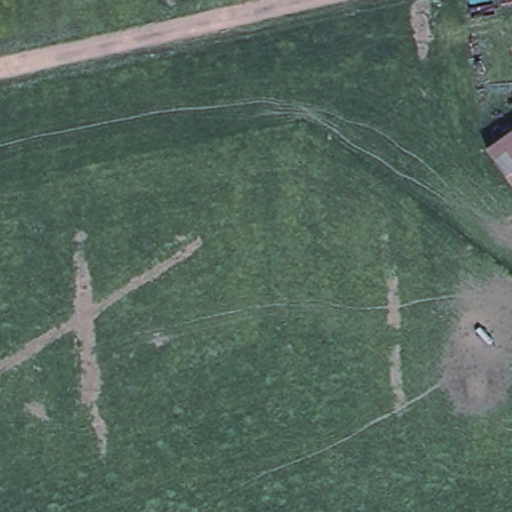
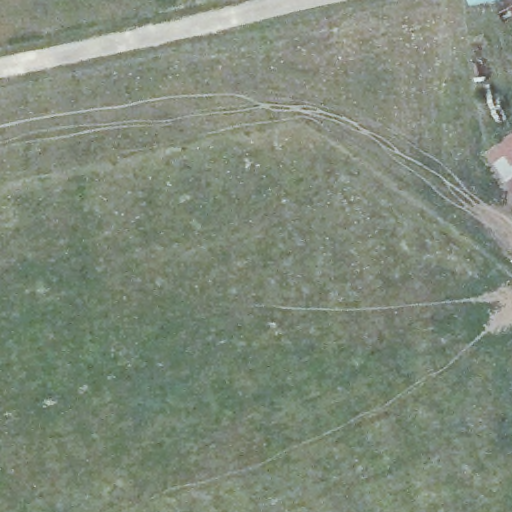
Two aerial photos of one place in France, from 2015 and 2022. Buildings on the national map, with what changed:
unchanged [(512,131),(512,179),(490,146),(512,131)]

